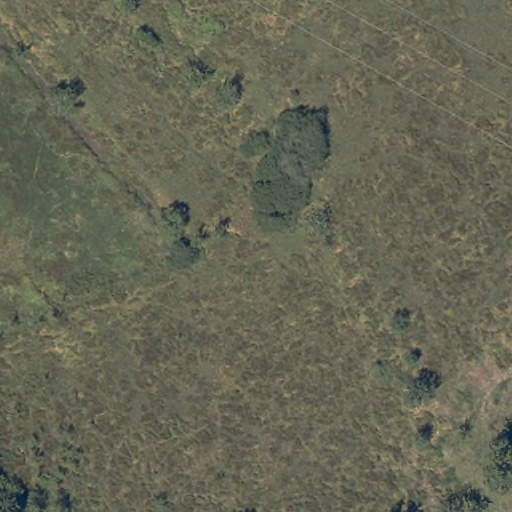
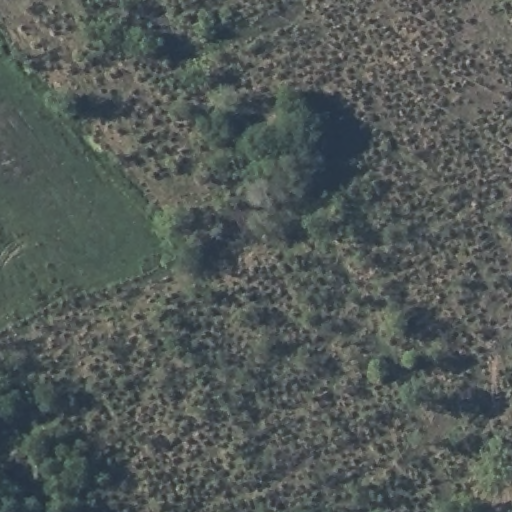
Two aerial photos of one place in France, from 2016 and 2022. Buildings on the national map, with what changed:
[]

